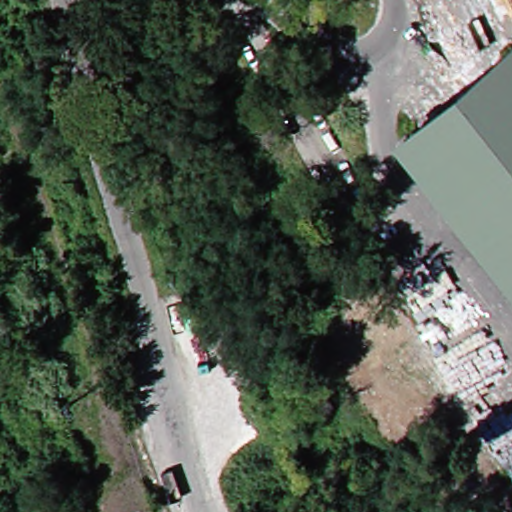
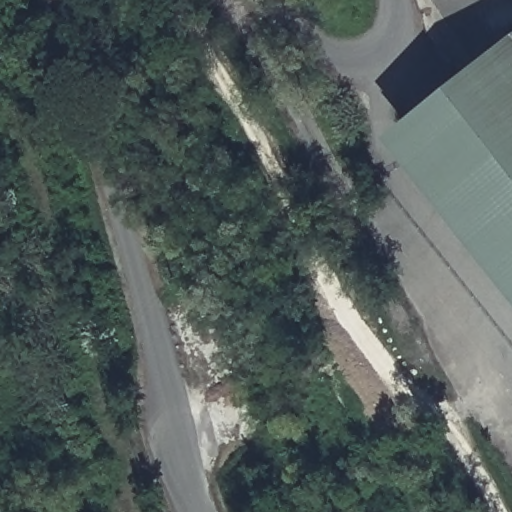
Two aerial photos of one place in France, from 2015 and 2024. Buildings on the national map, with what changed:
unchanged [(397,118),(506,37),(512,45),(512,276),(509,272),(472,223),(397,118)]

